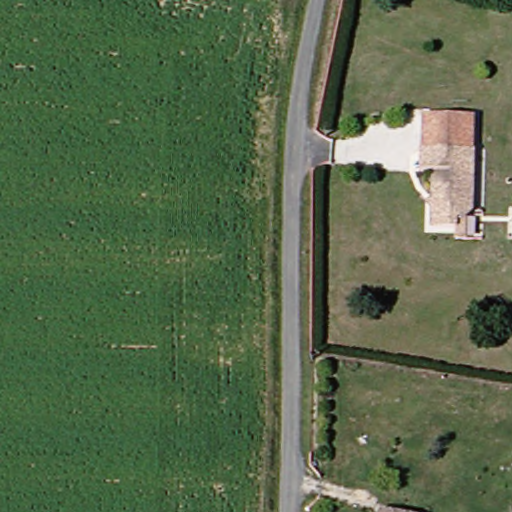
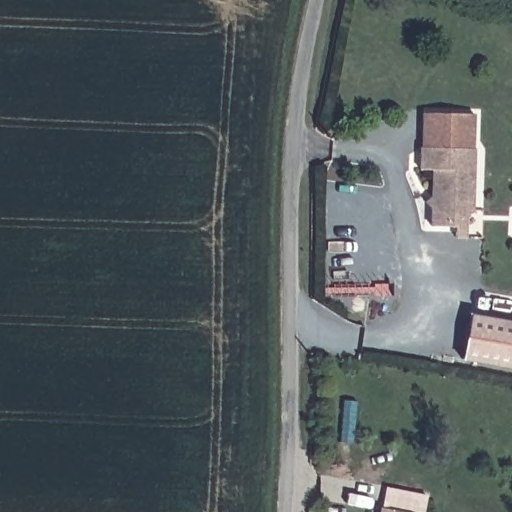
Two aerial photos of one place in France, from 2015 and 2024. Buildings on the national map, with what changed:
unchanged [(417,115),(472,115),(472,150),(417,150),(417,115)]
unchanged [(472,150),(472,242),(452,241),(452,230),(425,228),(427,174),(416,173),(417,150),(472,150)]
new [(512,320),(512,369),(465,361),(473,314),(512,320)]

